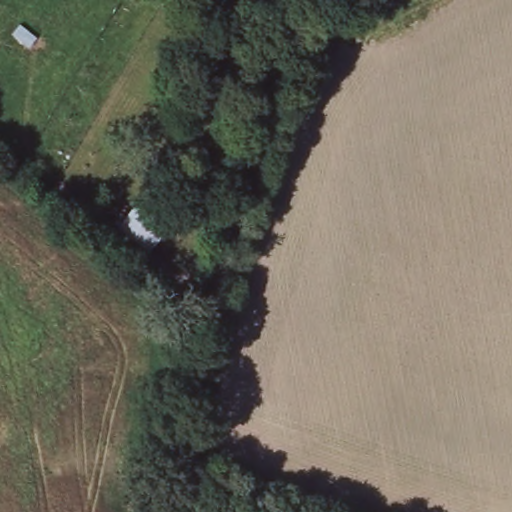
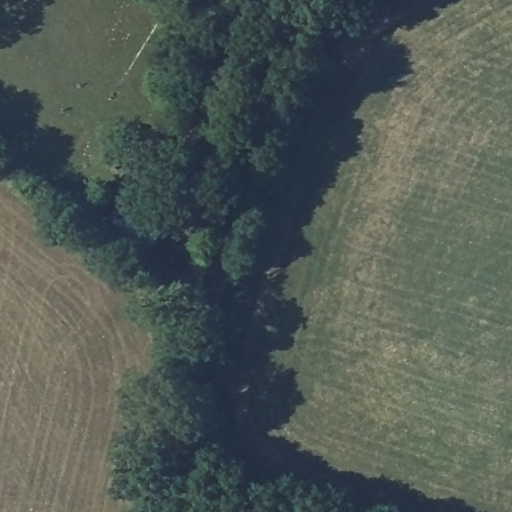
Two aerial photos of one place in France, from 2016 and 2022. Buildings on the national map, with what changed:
unchanged [(155,251),(122,227),(141,202),(172,228),(155,251)]

